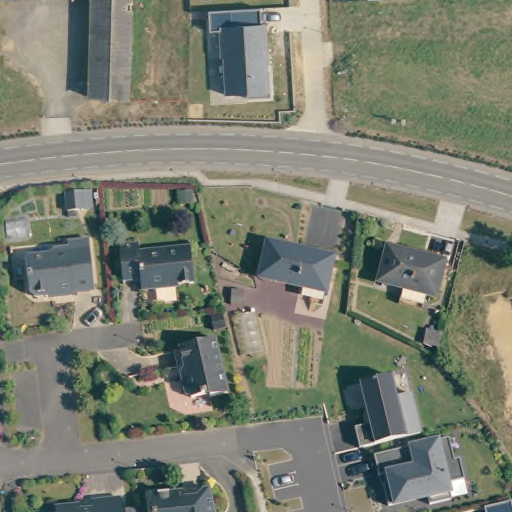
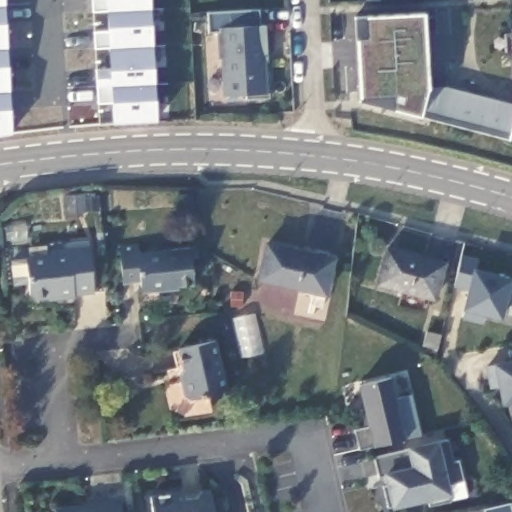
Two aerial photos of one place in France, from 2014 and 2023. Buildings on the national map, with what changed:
new [(0,135),(0,0),(5,0),(14,135),(0,135)]
demolished [(97,100),(94,0),(136,0),(131,99),(97,100)]
unchanged [(261,25),(266,25),(272,96),(250,98),(250,94),(224,95),(221,29),(209,31),(207,12),(259,9),(261,25)]
new [(353,16),(366,16),(423,13),(428,88),(448,86),(512,104),(512,139),(418,116),(356,100),(355,39),(353,16)]
new [(512,27),(512,34),(511,28),(512,27)]
unchanged [(195,240),(200,276),(184,278),(182,282),(147,287),(145,275),(128,277),(123,240),(141,237),(143,248),(195,240)]
unchanged [(100,290),(80,293),(79,296),(61,299),(55,295),(42,297),(36,292),(31,255),(74,249),(73,242),(92,239),(100,290)]
unchanged [(278,240),(335,253),(327,289),(270,276),(278,240)]
unchanged [(395,247),(444,260),(435,294),(386,281),(395,247)]
new [(512,277),(512,279),(511,280),(512,280),(512,298),(507,298),(501,320),(486,316),(482,324),(460,318),(464,310),(461,310),(466,290),(453,287),(461,254),(476,258),(478,269),(512,277)]
unchanged [(440,348),(444,335),(455,337),(451,351),(440,348)]
unchanged [(230,394),(189,398),(184,374),(186,370),(181,348),(216,339),(230,394)]
new [(494,363),(512,360),(512,404),(501,406),(494,363)]
unchanged [(360,448),(355,428),(368,426),(358,385),(393,377),(398,400),(412,396),(420,435),(360,448)]
unchanged [(383,474),(379,475),(375,458),(405,451),(403,447),(436,439),(437,442),(448,439),(452,460),(459,458),(466,496),(431,505),(430,499),(390,507),(383,474)]
unchanged [(225,512),(163,512),(161,511),(159,490),(190,486),(196,495),(205,494),(208,486),(219,484),(225,512)]
unchanged [(79,505),(83,508),(99,506),(98,500),(124,497),(125,512),(59,512),(59,507),(79,505)]
unchanged [(484,509),(510,504),(512,512),(485,512),(484,509)]

